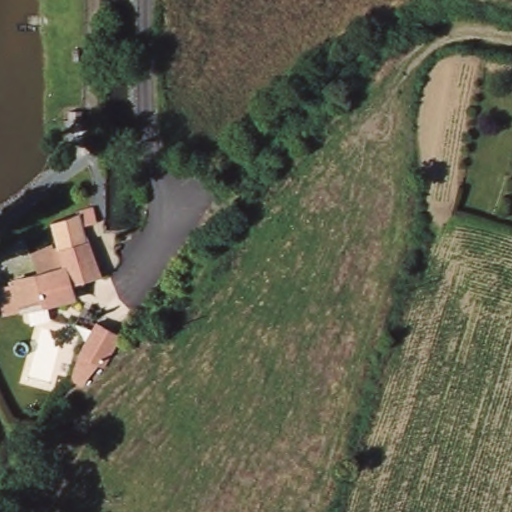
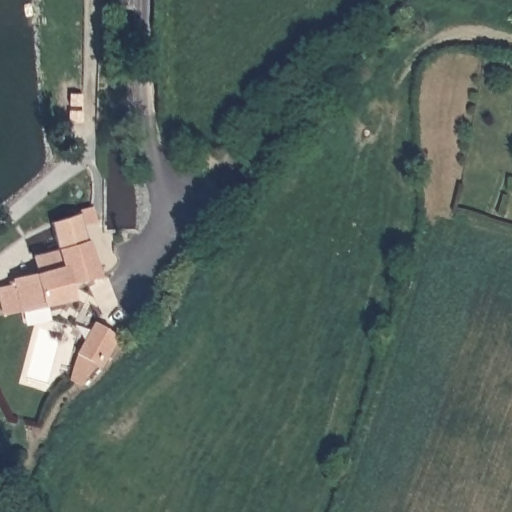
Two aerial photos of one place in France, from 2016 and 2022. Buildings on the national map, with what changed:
unchanged [(101,221),(91,226),(106,277),(76,282),(78,288),(81,297),(76,298),(74,299),(55,304),(54,304),(50,305),(15,314),(8,317),(0,290),(0,284),(31,277),(61,270),(69,268),(57,233),(56,231),(55,229),(98,210),(101,221)]
unchanged [(81,354),(86,349),(107,329),(108,329),(123,345),(97,370),(93,365),(90,363),(81,383),(70,376),(81,354)]

